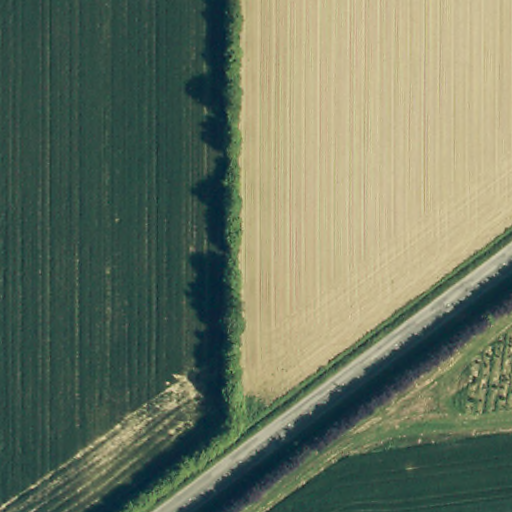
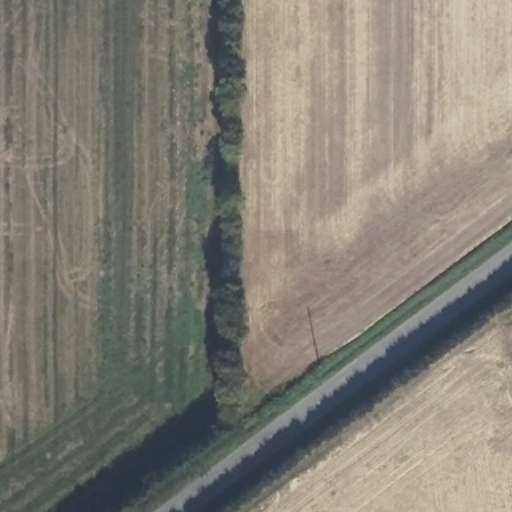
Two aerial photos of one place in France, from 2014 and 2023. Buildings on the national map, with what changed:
[]

